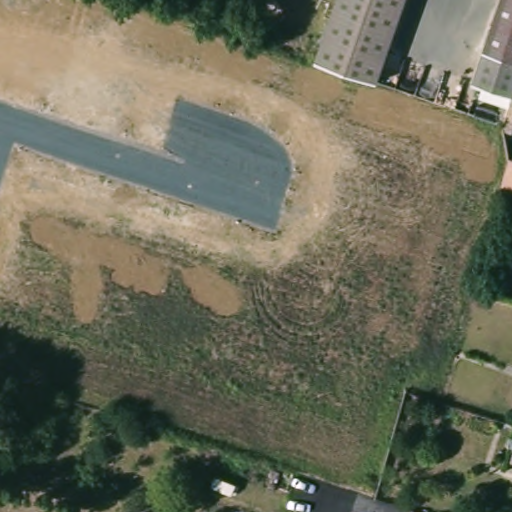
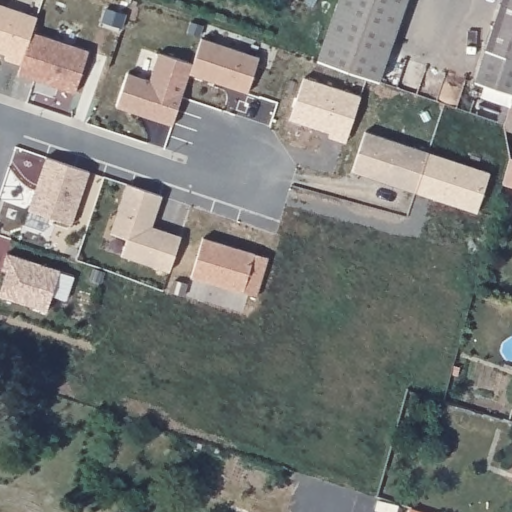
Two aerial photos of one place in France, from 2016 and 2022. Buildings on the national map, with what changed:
unchanged [(377,77),(317,56),(335,0),(404,0),(377,77)]
unchanged [(471,76),(496,0),(512,0),(512,84),(511,89),(471,76)]
new [(32,32),(21,64),(5,59),(7,54),(0,52),(0,5),(37,17),(32,32)]
new [(21,64),(32,32),(89,50),(75,93),(17,75),(21,64)]
new [(193,64),(201,39),(258,57),(247,93),(190,74),(193,64)]
new [(116,107),(127,73),(149,81),(159,53),(193,64),(190,74),(172,125),(155,120),(132,112),(116,107)]
unchanged [(507,98),(511,89),(512,84),(512,99),(507,98)]
new [(364,131),(428,152),(415,192),(351,171),(364,131)]
new [(428,152),(490,172),(476,213),(415,192),(428,152)]
unchanged [(512,155),(512,184),(501,180),(508,154),(512,155)]
new [(46,157),(89,171),(72,223),(29,208),(46,157)]
new [(162,195),(154,218),(152,226),(181,236),(169,271),(127,257),(132,240),(116,235),(132,186),(162,195)]
new [(202,238),(268,258),(257,296),(191,276),(202,238)]
new [(2,269),(7,253),(60,270),(47,311),(0,296),(0,292),(7,271),(2,269)]

